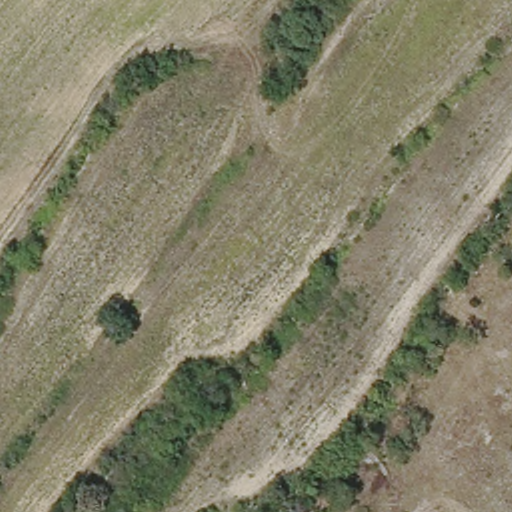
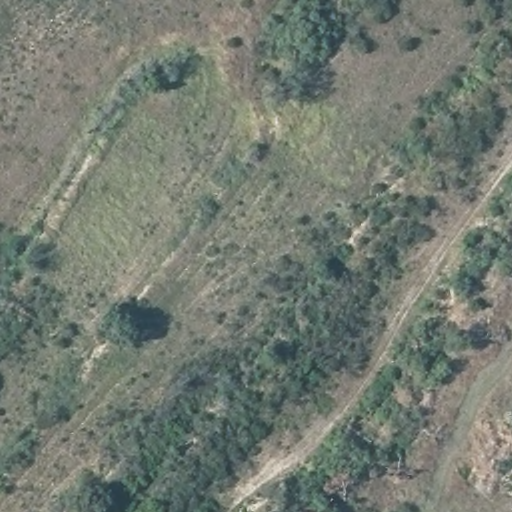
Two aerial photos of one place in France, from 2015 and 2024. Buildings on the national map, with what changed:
[]

